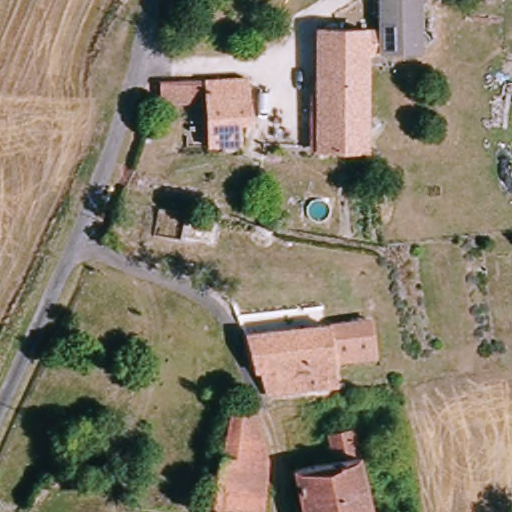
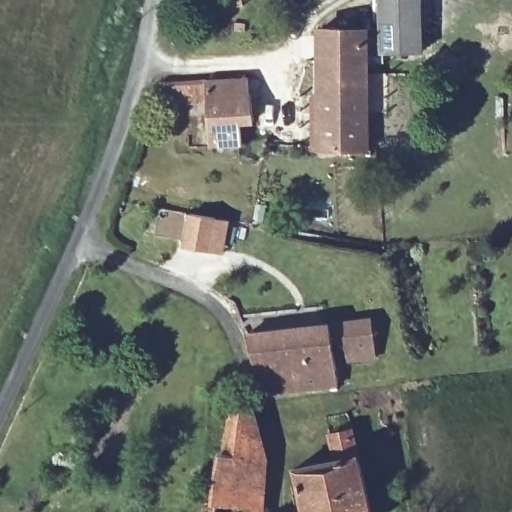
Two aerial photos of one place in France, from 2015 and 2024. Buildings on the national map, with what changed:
unchanged [(318,40),(368,39),(379,40),(379,0),(421,0),(424,52),(379,53),(378,74),(367,73),(366,155),(317,155),(306,155),(306,104),(318,104),(318,40)]
unchanged [(163,89),(250,81),(254,124),(244,125),(246,146),(213,149),(209,104),(165,108),(163,89)]
new [(230,222),(224,255),(182,247),(188,214),(230,222)]
unchanged [(373,323),(378,362),(344,367),(342,360),(338,327),(373,323)]
unchanged [(338,327),(342,360),(272,370),(265,371),(257,336),(338,327)]
unchanged [(308,372),(311,389),(276,395),(272,370),(342,360),(344,367),(308,372)]
unchanged [(221,451),(230,451),(236,408),(258,411),(271,463),(266,504),(220,498),(221,451)]
unchanged [(339,467),(333,442),(353,437),(373,512),(308,512),(300,477),(339,467)]
unchanged [(220,498),(266,504),(265,512),(208,512),(209,497),(220,498)]

